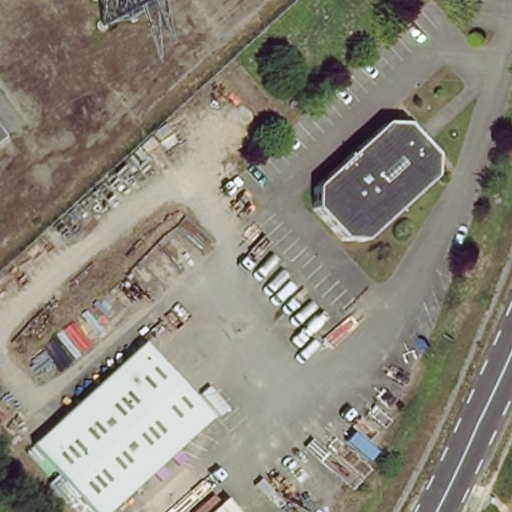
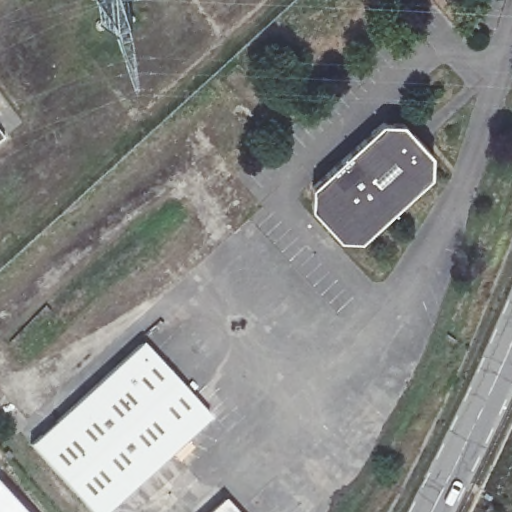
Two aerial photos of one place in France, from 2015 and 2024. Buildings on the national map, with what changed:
unchanged [(313,208),(315,189),(384,124),(403,125),(437,160),(437,185),(373,244),(347,240),(313,208)]
unchanged [(32,445),(142,344),(215,418),(117,512),(96,512),(32,445)]
new [(24,512),(0,512),(0,486),(24,512)]
unchanged [(226,506),(233,512),(219,512),(226,506)]

